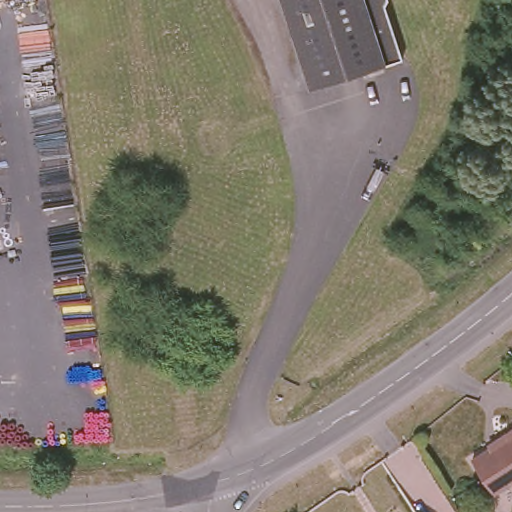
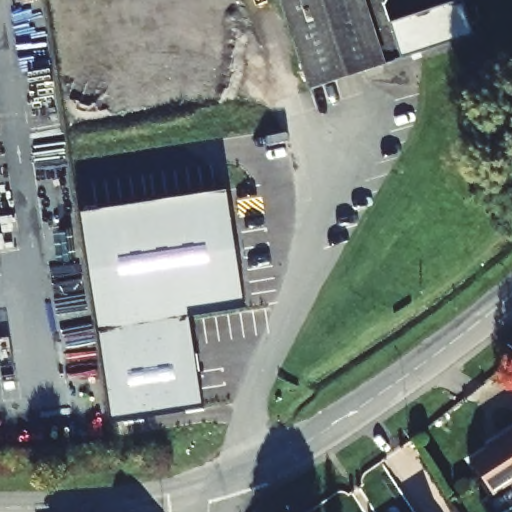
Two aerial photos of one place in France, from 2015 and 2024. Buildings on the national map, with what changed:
unchanged [(386,10),(402,59),(309,86),(284,0),(389,0),(386,10)]
new [(391,24),(457,0),(460,0),(472,33),(402,59),(391,24)]
new [(203,408),(110,422),(80,212),(227,191),(246,309),(189,317),(203,408)]
unchanged [(471,454),(496,438),(493,432),(512,421),(512,477),(493,490),(471,454)]

